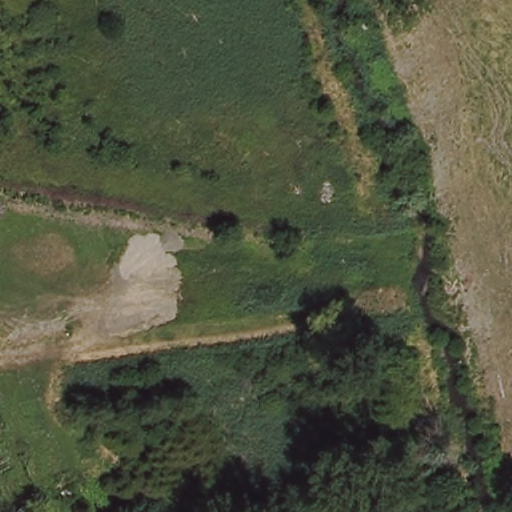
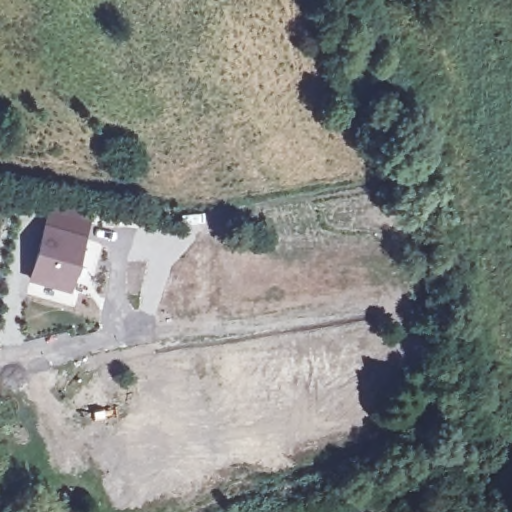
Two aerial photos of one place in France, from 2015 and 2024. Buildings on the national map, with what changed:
new [(50,203),(93,214),(70,294),(27,282),(50,203)]

